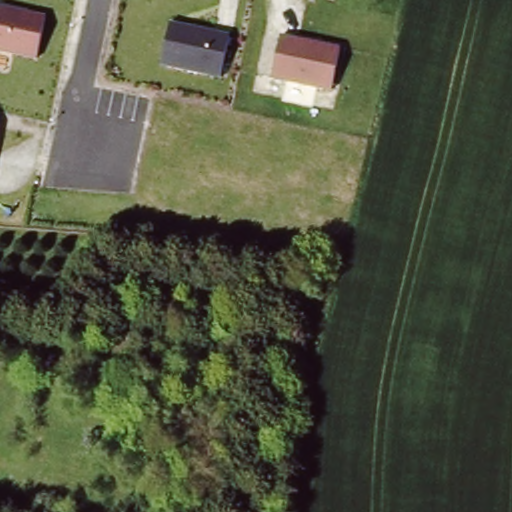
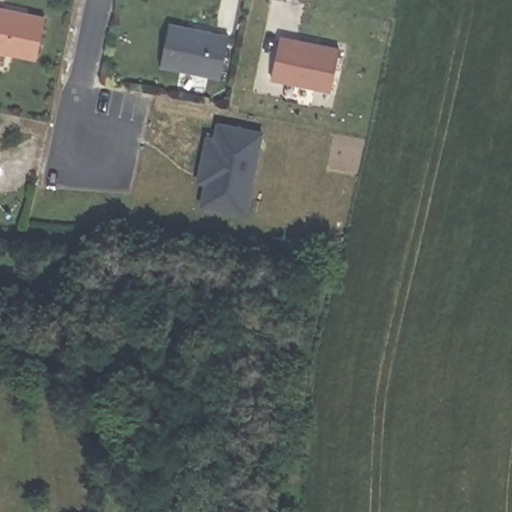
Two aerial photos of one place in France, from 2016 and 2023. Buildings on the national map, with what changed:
unchanged [(38,67),(0,61),(0,7),(48,19),(38,67)]
unchanged [(230,36),(220,80),(160,68),(170,23),(230,36)]
unchanged [(341,50),(332,91),(271,78),(281,36),(341,50)]
new [(210,139),(218,141),(221,127),(264,136),(247,218),(203,209),(207,186),(208,186),(200,185),(203,172),(210,139)]

